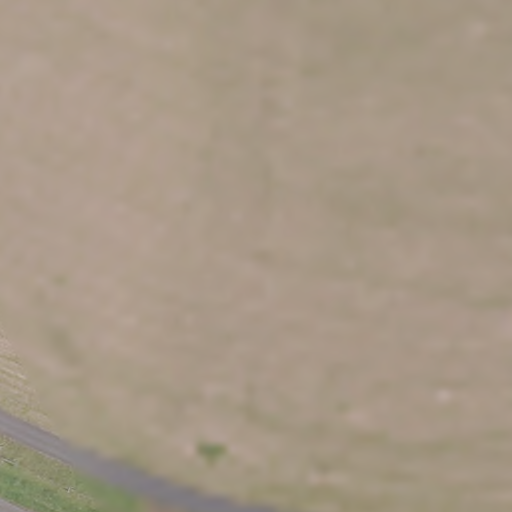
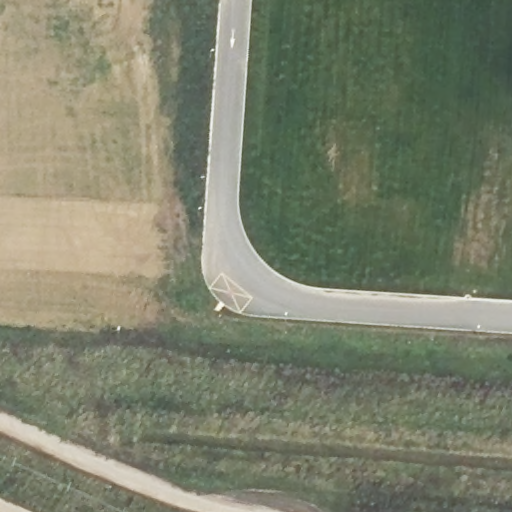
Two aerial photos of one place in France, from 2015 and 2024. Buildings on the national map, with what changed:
[]

